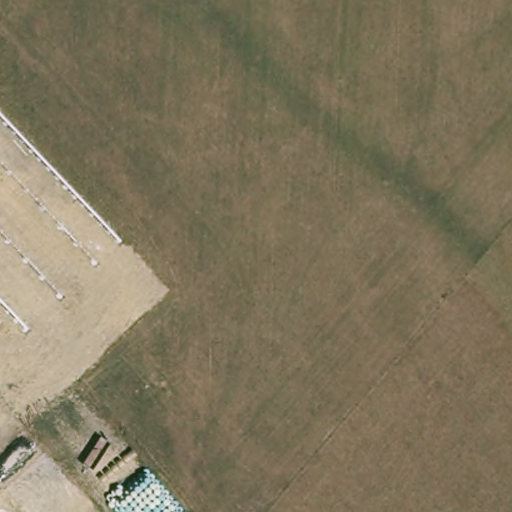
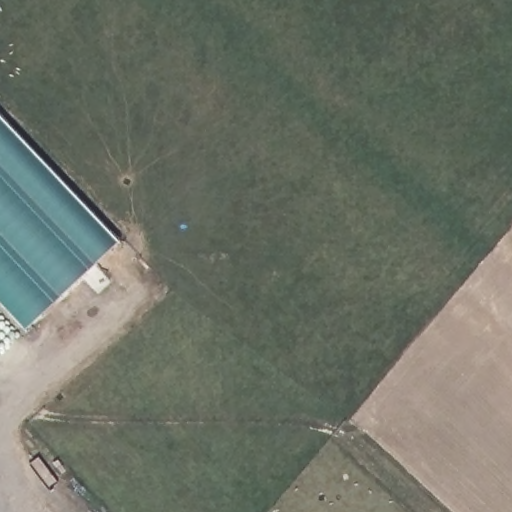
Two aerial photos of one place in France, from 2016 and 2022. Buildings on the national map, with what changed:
new [(120,241),(26,328),(0,301),(0,115),(120,241)]

